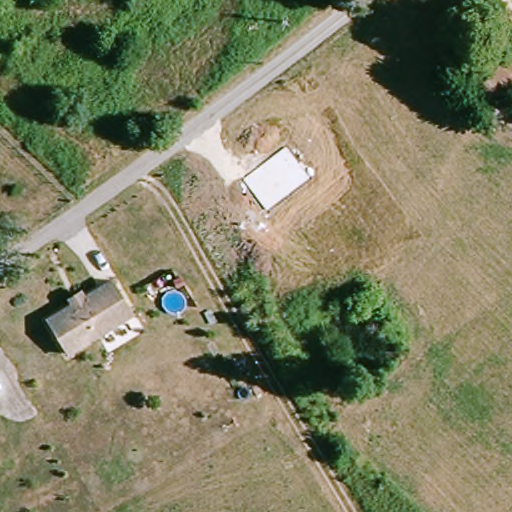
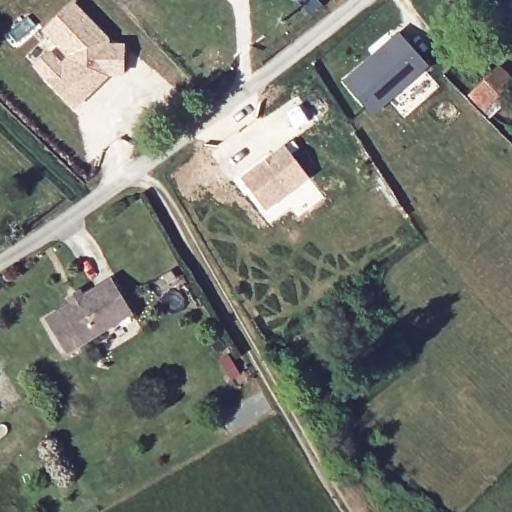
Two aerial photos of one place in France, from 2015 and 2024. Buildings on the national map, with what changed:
unchanged [(446,49),(417,13),(433,0),(439,0),(465,33),(446,49)]
new [(74,108),(46,80),(35,67),(50,54),(61,66),(68,60),(66,56),(43,31),(72,4),(106,40),(102,44),(104,46),(122,46),(122,75),(107,75),(107,76),(96,86),(74,108)]
new [(398,34),(427,66),(372,114),(344,81),(398,34)]
unchanged [(485,83),(497,96),(484,109),(472,95),(485,83)]
unchanged [(310,181),(267,213),(241,179),(284,146),(310,181)]
unchanged [(142,324),(75,365),(55,331),(81,316),(77,311),(89,303),(92,308),(121,291),(142,324)]

